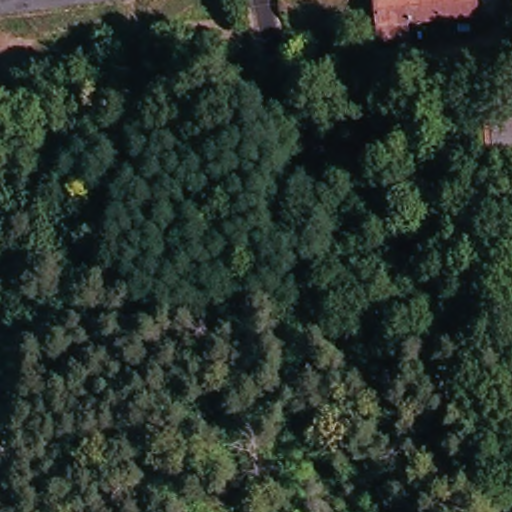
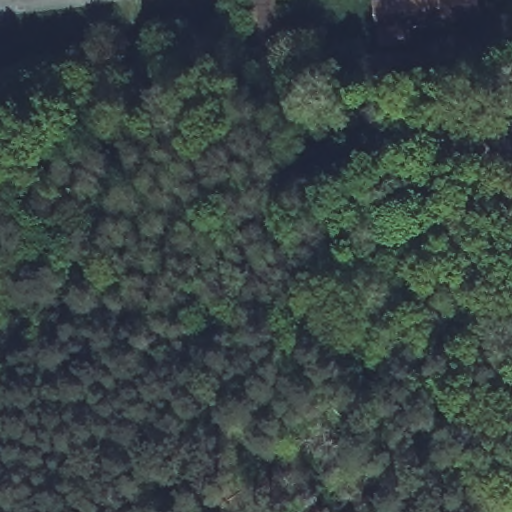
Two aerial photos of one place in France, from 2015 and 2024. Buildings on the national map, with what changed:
unchanged [(411,0),(471,0),(475,22),(405,32),(408,55),(379,59),(373,5),(411,0)]
unchanged [(512,163),(492,164),(491,125),(512,124),(512,163)]

